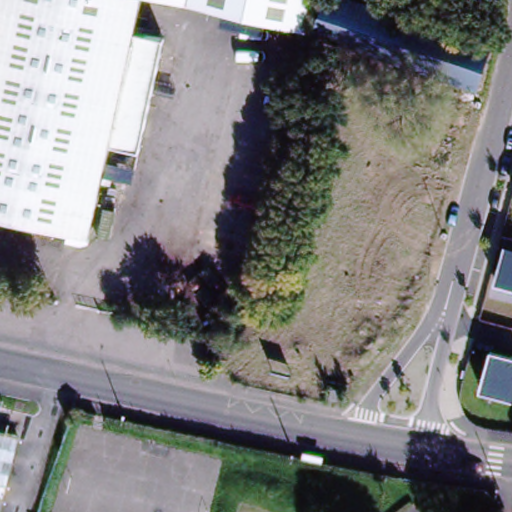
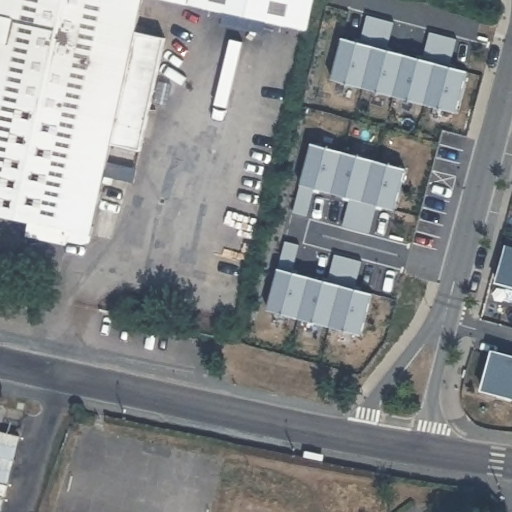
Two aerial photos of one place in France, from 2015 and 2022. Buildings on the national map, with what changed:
unchanged [(42,222),(0,213),(0,0),(146,0),(139,32),(130,74),(126,96),(115,143),(95,233),(63,226),(61,236),(40,232),(42,222)]
unchanged [(182,0),(316,0),(310,28),(182,0)]
demolished [(327,0),(344,0),(432,29),(434,22),(490,41),(475,88),(316,36),(327,0)]
new [(393,25),(387,51),(422,60),(429,32),(456,40),(449,67),(467,72),(455,113),(330,79),(341,39),(359,42),(365,17),(393,25)]
unchanged [(155,35),(171,37),(146,150),(126,146),(115,143),(126,96),(130,74),(139,32),(155,35)]
new [(393,212),(375,206),(369,234),(342,226),(349,199),(314,189),(306,216),(292,213),(301,184),(310,145),(405,169),(393,212)]
new [(359,336),(266,309),(276,268),(284,242),(298,246),(289,272),(326,281),(333,254),(361,262),(354,288),(372,293),(359,336)]
unchanged [(505,247),(512,248),(512,287),(496,282),(505,247)]
unchanged [(512,396),(481,389),(491,351),(512,357),(512,396)]
unchanged [(28,438),(8,512),(0,512),(0,429),(28,438)]

